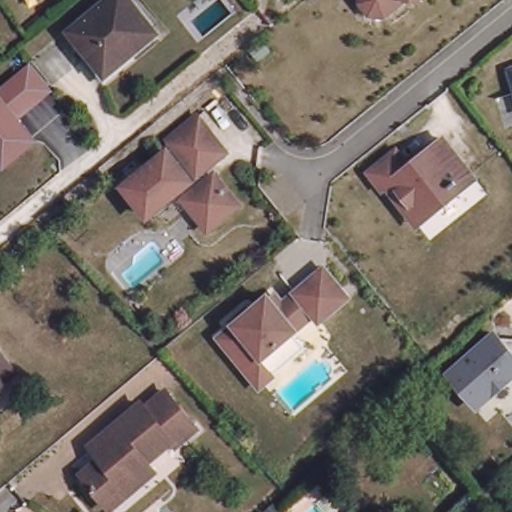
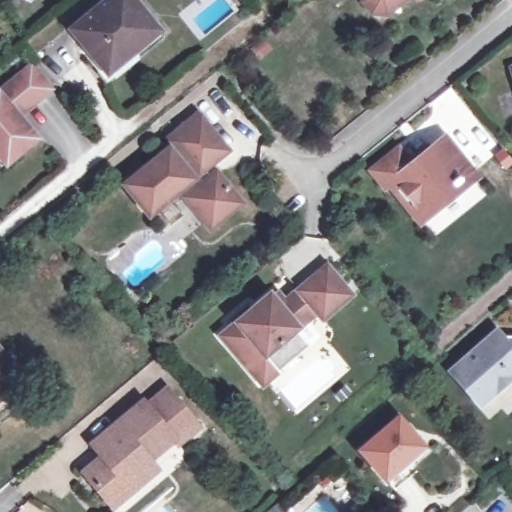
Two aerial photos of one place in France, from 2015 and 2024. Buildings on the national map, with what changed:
unchanged [(137,0),(166,34),(139,56),(134,50),(108,71),(76,33),(116,0),(137,0)]
unchanged [(406,0),(387,15),(371,14),(362,2),(362,0),(406,0)]
unchanged [(41,140),(5,168),(0,162),(0,163),(0,86),(32,61),(55,90),(20,115),(41,140)]
unchanged [(507,63),(512,62),(512,81),(507,63)]
unchanged [(189,115),(218,151),(191,173),(197,182),(206,174),(230,203),(201,226),(171,189),(141,213),(118,183),(160,150),(169,162),(176,157),(161,138),(189,115)]
unchanged [(410,211),(384,179),(380,182),(366,166),(391,146),(404,162),(439,132),(467,167),(451,180),(455,186),(433,204),(416,218),(410,211)]
unchanged [(248,368),(216,331),(266,289),(276,300),(321,261),(346,290),(318,314),(312,308),(291,325),(305,341),(295,349),(274,367),(259,380),(248,368)]
unchanged [(0,345),(0,329),(8,338),(0,345)]
unchanged [(465,396),(441,369),(486,330),(500,346),(512,336),(512,366),(483,390),(469,402),(465,396)]
unchanged [(0,390),(0,352),(18,374),(0,390)]
unchanged [(148,485),(118,511),(96,485),(90,478),(108,463),(97,450),(147,408),(151,413),(171,396),(202,431),(182,449),(178,444),(153,465),(155,468),(161,475),(148,485)]
new [(394,490),(385,478),(360,450),(398,417),(426,449),(409,463),(415,472),(394,490)]

